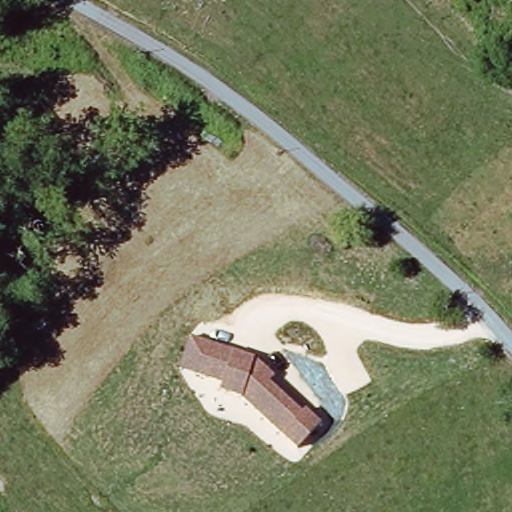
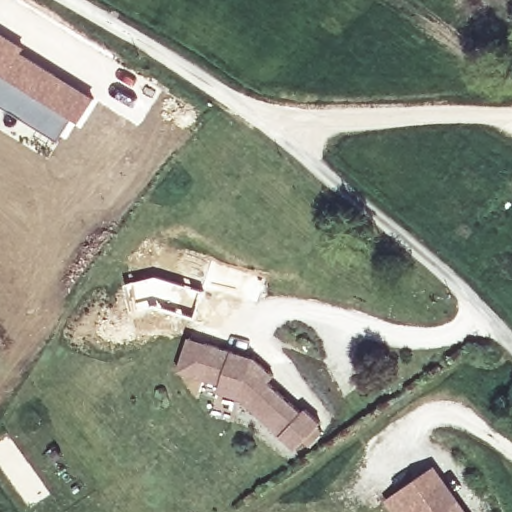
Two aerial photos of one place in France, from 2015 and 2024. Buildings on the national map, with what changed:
new [(23,52),(94,99),(78,122),(73,119),(58,141),(3,105),(0,108),(0,32),(24,49),(23,52)]
demolished [(102,117),(92,132),(61,110),(71,95),(102,117)]
unchanged [(257,358),(278,379),(273,385),(302,411),(306,407),(322,423),(295,450),(242,400),(217,392),(219,383),(181,371),(189,340),(257,358)]
new [(385,501),(435,466),(466,512),(393,512),(385,501)]

